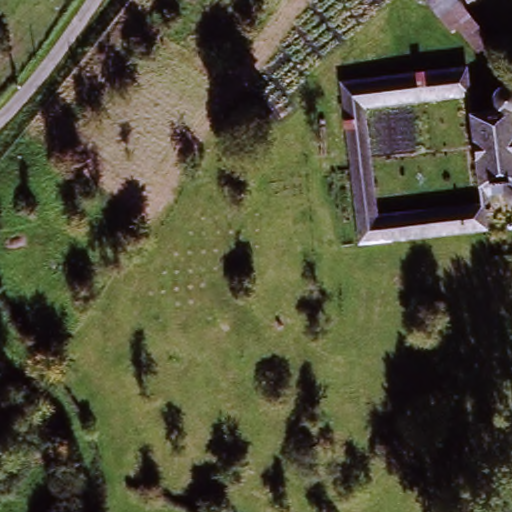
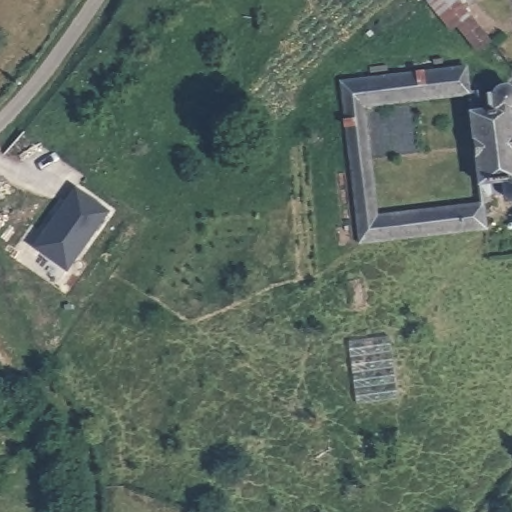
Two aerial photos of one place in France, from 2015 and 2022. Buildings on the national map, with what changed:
unchanged [(458,23),(449,10),(463,0),(464,0),(472,11),(494,40),(484,48),(480,51),(458,23)]
unchanged [(469,0),(476,0),(472,4),(469,0)]
unchanged [(485,233),(420,240),(357,249),(337,89),(365,86),(464,75),(467,100),(362,113),(376,218),(482,204),(485,233)]
unchanged [(477,184),(477,174),(471,133),(469,112),(480,110),(481,113),(482,115),(485,115),(494,114),(494,104),(497,94),(508,90),(512,93),(512,114),(508,116),(512,145),(512,205),(510,205),(505,198),(502,180),(490,182),(493,203),(482,204),(477,184)]
new [(110,210),(66,272),(32,248),(74,185),(110,210)]

